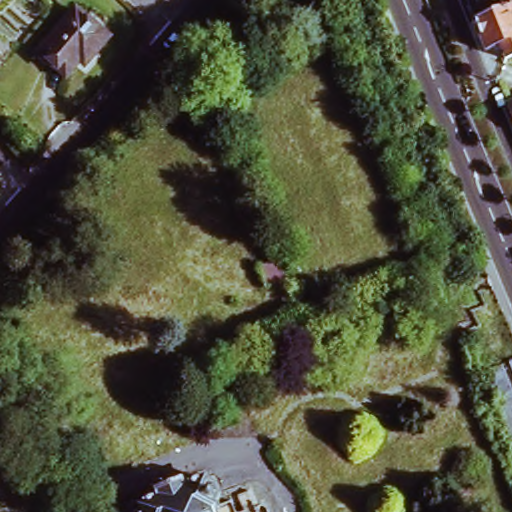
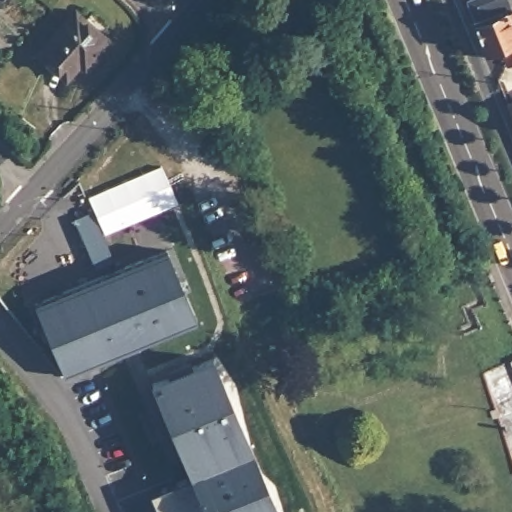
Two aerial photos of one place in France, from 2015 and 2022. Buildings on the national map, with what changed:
unchanged [(477,0),(509,0),(512,6),(494,15),(479,20),(471,2),(477,0)]
unchanged [(479,20),(494,15),(512,6),(512,26),(512,28),(512,59),(506,61),(500,46),(486,52),(474,23),(479,20)]
unchanged [(36,50),(74,7),(106,37),(94,51),(89,47),(64,75),(36,50)]
unchanged [(512,99),(512,112),(508,100),(512,99)]
new [(75,222),(93,214),(114,264),(96,271),(75,222)]
new [(166,251),(197,322),(65,380),(34,308),(166,251)]
new [(214,359),(220,372),(227,402),(232,400),(237,413),(239,431),(251,445),(263,473),(258,475),(279,512),(157,512),(150,495),(191,478),(175,440),(162,396),(157,398),(152,385),(214,359)]
unchanged [(509,450),(482,370),(512,360),(512,448),(509,450)]
demolished [(156,498),(154,493),(163,490),(180,482),(182,487),(205,478),(208,485),(215,487),(218,495),(215,502),(217,506),(232,500),(237,512),(136,512),(134,507),(156,498)]

